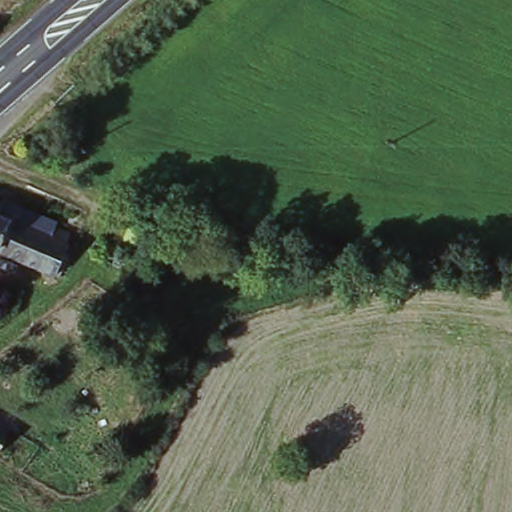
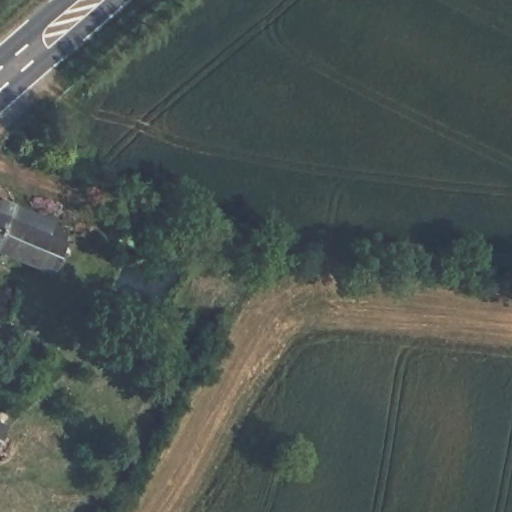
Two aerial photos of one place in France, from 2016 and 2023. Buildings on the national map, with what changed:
unchanged [(0,258),(0,207),(5,209),(6,202),(59,222),(55,231),(73,237),(57,282),(0,258)]
unchanged [(9,428),(0,443),(0,423),(9,428)]

